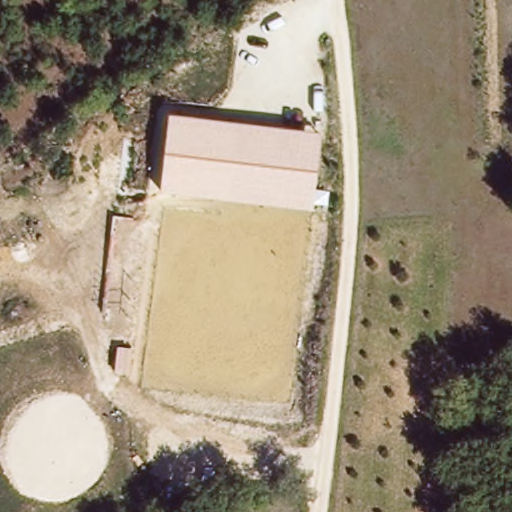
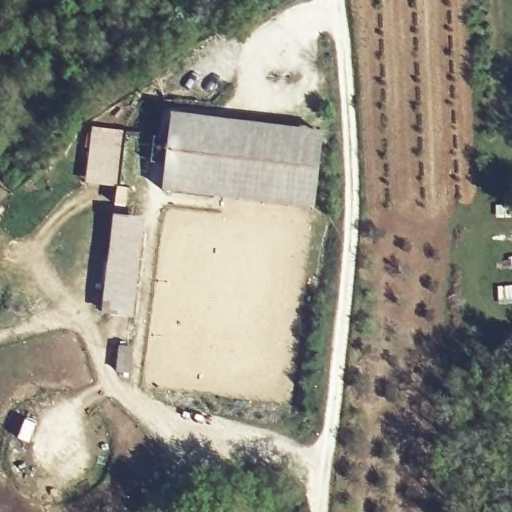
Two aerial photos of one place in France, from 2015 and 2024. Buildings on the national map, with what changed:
unchanged [(322,133),(312,210),(160,193),(170,115),(322,133)]
new [(117,187),(85,185),(91,127),(101,128),(100,134),(125,137),(117,187)]
new [(114,215),(145,218),(133,318),(102,315),(114,215)]

